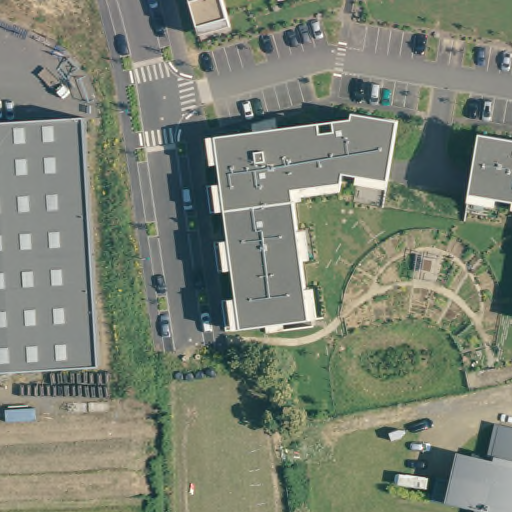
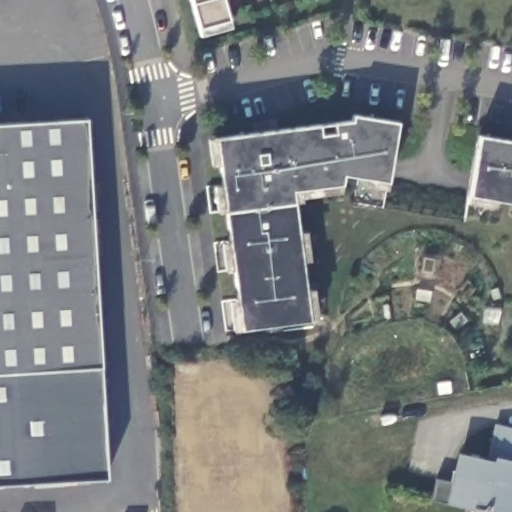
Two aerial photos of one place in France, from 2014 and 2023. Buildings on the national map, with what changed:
unchanged [(191,0),(224,0),(231,27),(201,35),(192,3),(191,0)]
unchanged [(81,113),(95,362),(0,368),(0,118),(81,113)]
unchanged [(356,187),(357,175),(343,173),(340,193),(292,201),(298,231),(307,230),(311,258),(302,260),(305,289),(313,288),(318,317),(234,331),(229,300),(237,299),(233,271),(226,272),(221,241),(229,240),(226,212),(218,214),(213,186),(222,185),(220,165),(210,166),(207,138),(353,121),(353,114),(399,122),(387,188),(356,187)]
new [(95,362),(105,477),(0,483),(0,368),(95,362)]
unchanged [(512,429),(512,460),(497,457),(504,427),(512,429)]
unchanged [(486,509),(468,505),(467,509),(432,501),(437,478),(456,483),(462,456),(498,464),(500,459),(497,458),(497,457),(512,460),(512,512),(485,512),(486,509)]

